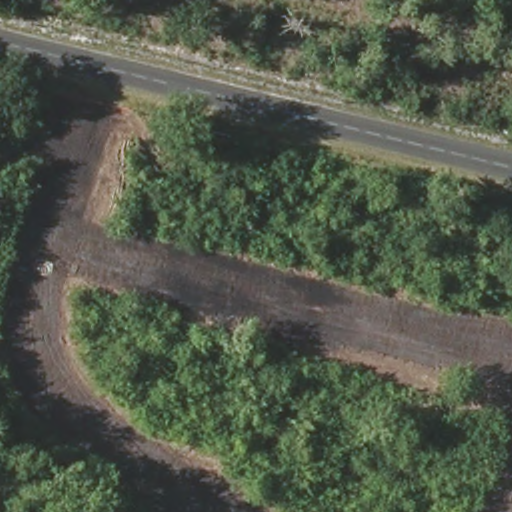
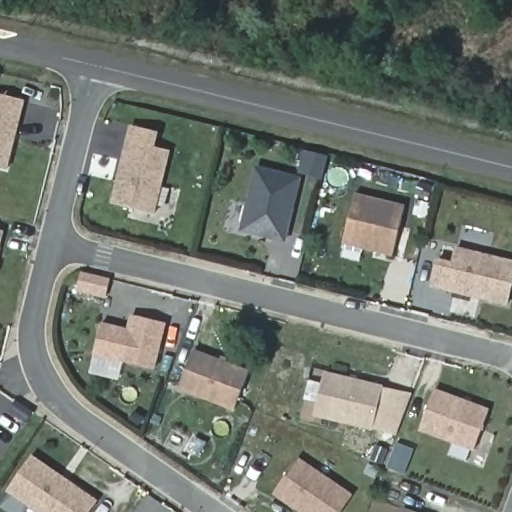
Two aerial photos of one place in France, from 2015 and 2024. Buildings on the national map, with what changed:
new [(25,101),(8,171),(0,169),(0,95),(25,101)]
new [(155,214),(110,204),(129,126),(158,132),(155,148),(171,151),(155,214)]
new [(239,233),(254,167),(301,177),(286,243),(239,233)]
new [(355,194),(404,204),(393,257),(343,245),(355,194)]
new [(4,231),(0,246),(0,230),(4,231)]
new [(512,260),(512,289),(508,306),(430,288),(436,259),(451,262),(455,246),(512,260)]
new [(154,370),(93,357),(100,323),(126,329),(130,315),(166,322),(154,370)]
new [(233,412),(177,390),(193,349),(249,369),(233,412)]
new [(372,431),(313,417),(323,372),(384,385),(372,431)]
new [(418,432),(432,389),(488,409),(473,450),(418,432)]
new [(397,442),(415,449),(405,475),(388,468),(397,442)]
new [(91,512),(37,512),(6,491),(31,455),(99,501),(91,512)]
new [(341,512),(298,512),(272,494),(297,458),(352,495),(341,512)]
new [(401,507),(415,512),(400,512),(401,507)]

